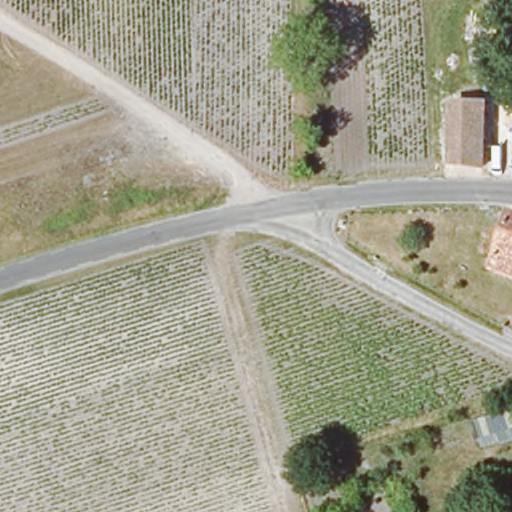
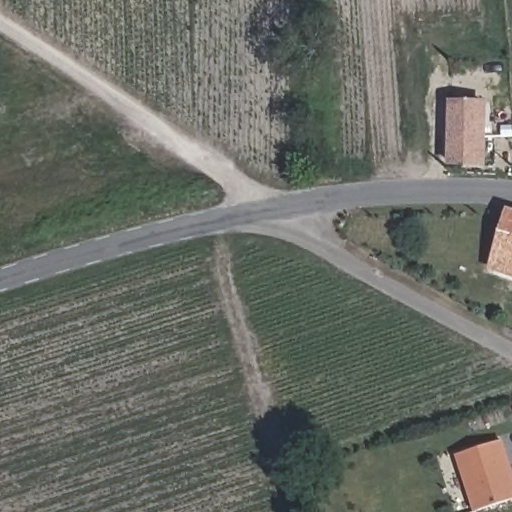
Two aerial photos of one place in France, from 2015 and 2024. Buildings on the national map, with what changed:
demolished [(451,62),(451,74),(440,75),(439,62),(451,62)]
unchanged [(453,166),(454,106),(488,106),(486,167),(453,166)]
unchanged [(508,213),(512,214),(512,275),(492,269),(508,213)]
demolished [(512,424),(502,455),(473,445),(483,415),(512,422),(512,424)]
new [(505,440),(512,463),(512,501),(476,512),(474,512),(456,455),(505,440)]

